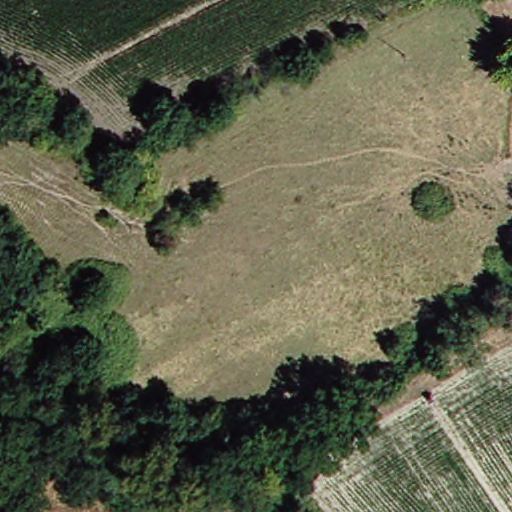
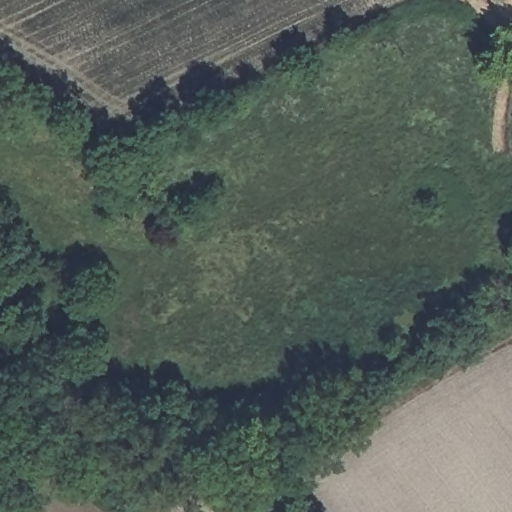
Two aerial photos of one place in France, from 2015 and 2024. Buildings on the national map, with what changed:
[]

